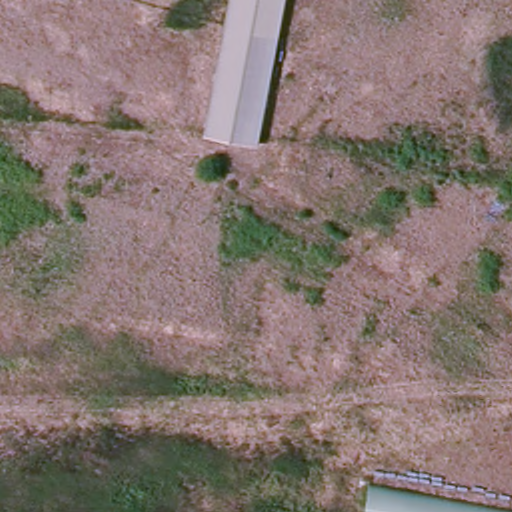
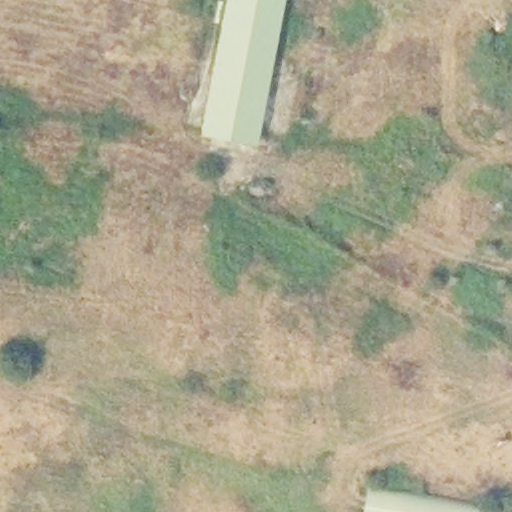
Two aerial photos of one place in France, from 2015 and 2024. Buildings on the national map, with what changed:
unchanged [(251,141),(202,132),(227,0),(278,0),(251,141)]
unchanged [(508,512),(361,512),(366,484),(508,512)]

